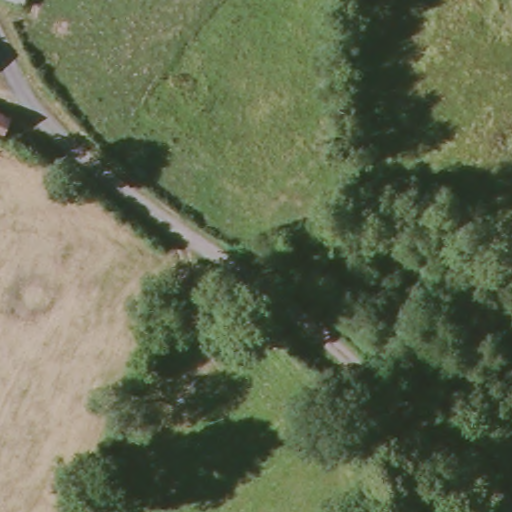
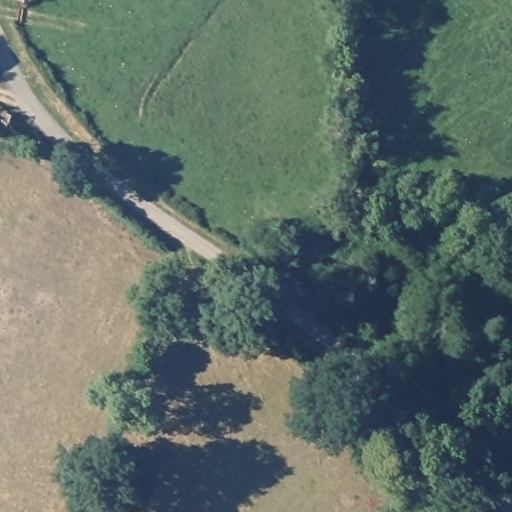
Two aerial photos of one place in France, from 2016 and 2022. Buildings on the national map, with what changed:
unchanged [(26,3),(15,0),(26,0),(26,3)]
unchanged [(0,110),(10,115),(2,135),(0,134),(0,110)]

